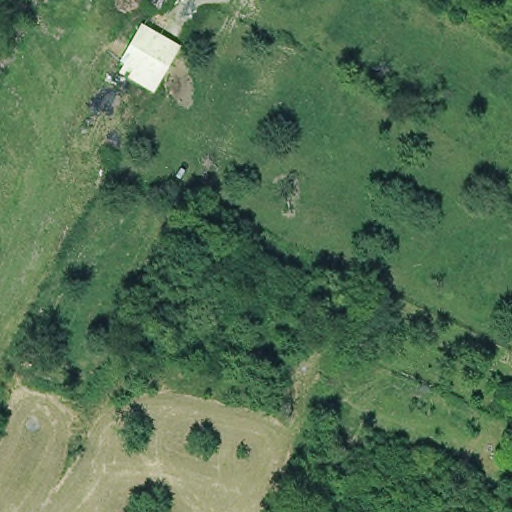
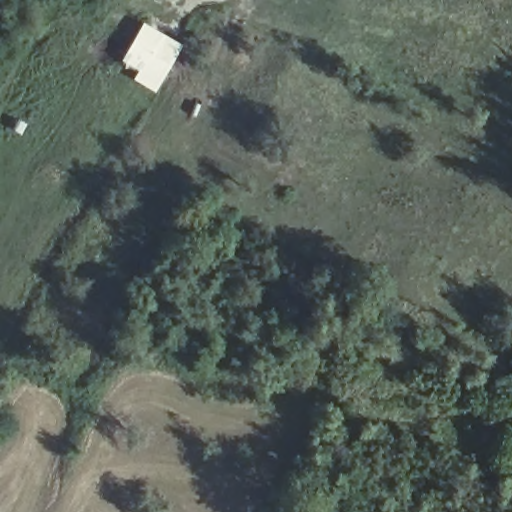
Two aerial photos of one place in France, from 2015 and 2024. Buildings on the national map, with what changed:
unchanged [(128,72),(140,56),(125,41),(141,17),(175,41),(152,84),(128,72)]
unchanged [(509,463),(512,455),(512,464),(509,463)]

